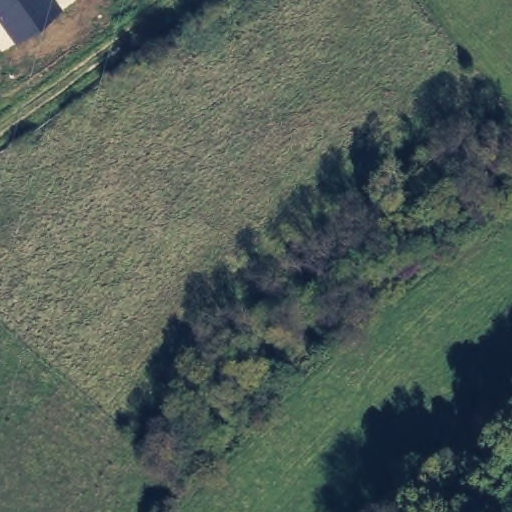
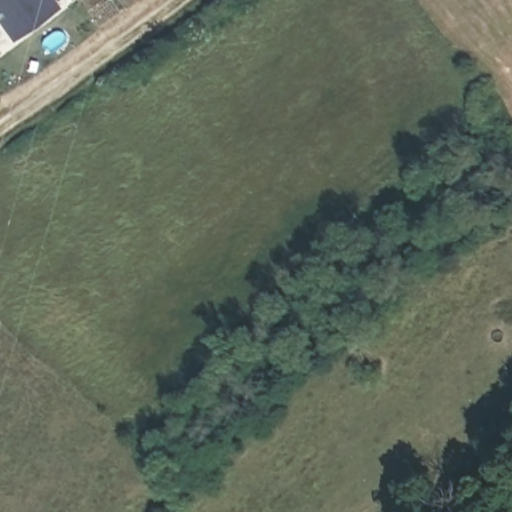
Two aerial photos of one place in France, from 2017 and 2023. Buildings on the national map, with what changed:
unchanged [(13,40),(0,21),(0,0),(58,0),(62,6),(13,40)]

